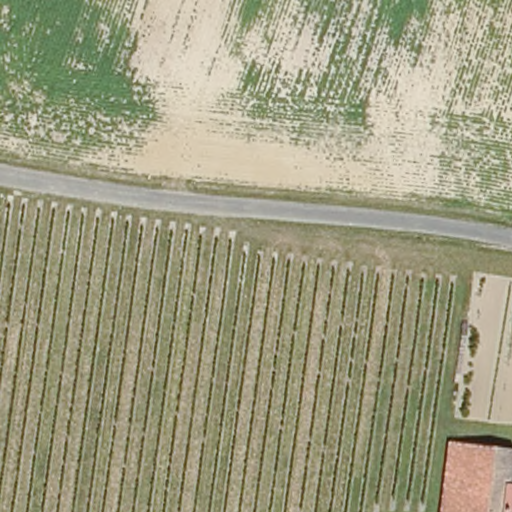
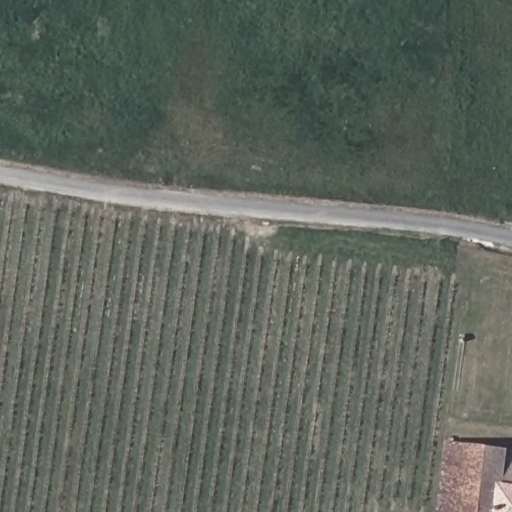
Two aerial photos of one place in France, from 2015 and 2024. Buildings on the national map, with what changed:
unchanged [(512,453),(512,512),(442,512),(450,446),(512,453)]

